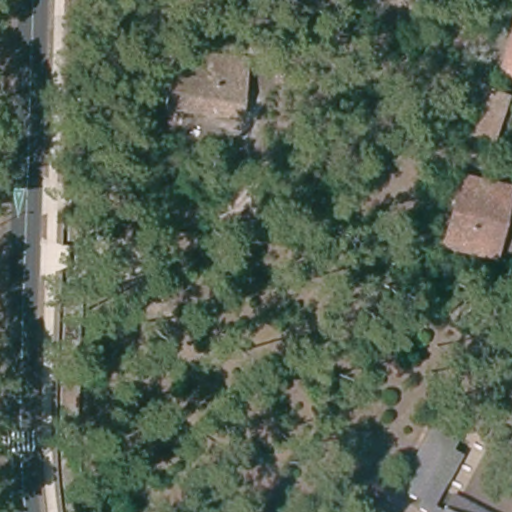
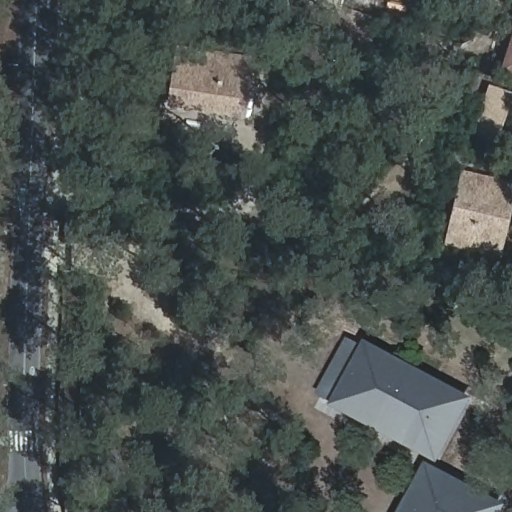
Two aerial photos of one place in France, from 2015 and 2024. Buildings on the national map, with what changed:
unchanged [(168,104),(177,47),(253,57),(242,117),(168,104)]
unchanged [(512,60),(512,68),(509,67),(512,60)]
unchanged [(508,95),(495,137),(480,133),(493,90),(508,95)]
unchanged [(462,170),(512,181),(512,207),(498,257),(443,245),(462,170)]
new [(437,412),(454,422),(428,467),(377,439),(382,430),(320,397),(350,341),(448,392),(437,412)]
demolished [(463,437),(458,446),(467,451),(445,491),(484,512),(428,512),(422,509),(425,502),(412,495),(417,486),(407,481),(407,480),(439,423),(463,437)]
new [(404,512),(426,470),(482,501),(477,512),(404,512)]

